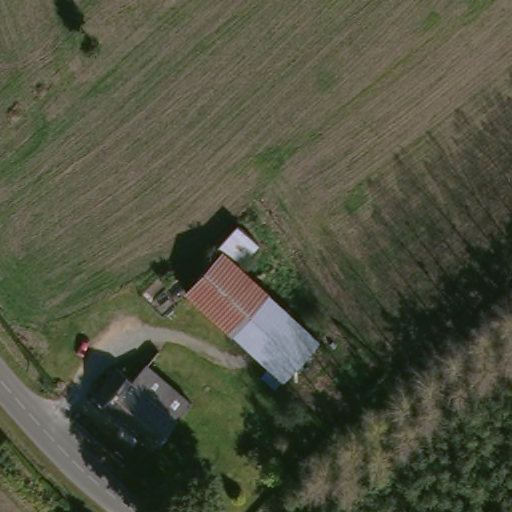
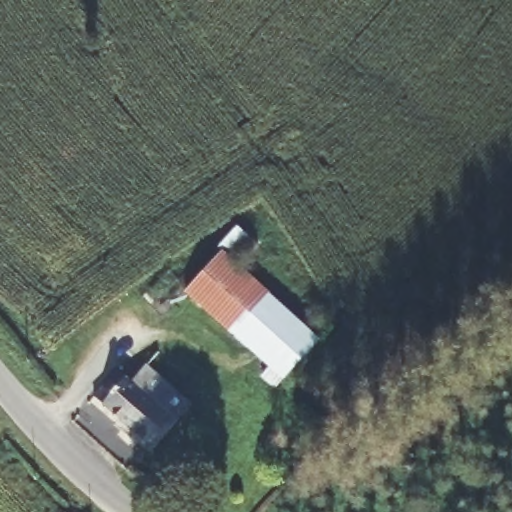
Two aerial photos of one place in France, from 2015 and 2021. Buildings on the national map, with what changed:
unchanged [(195,306),(177,290),(216,250),(232,265),(195,306)]
unchanged [(232,265),(263,293),(226,333),(195,306),(232,265)]
unchanged [(226,333),(263,293),(322,341),(281,390),(226,333)]
unchanged [(94,395),(119,368),(133,381),(148,366),(192,404),(155,449),(94,395)]

